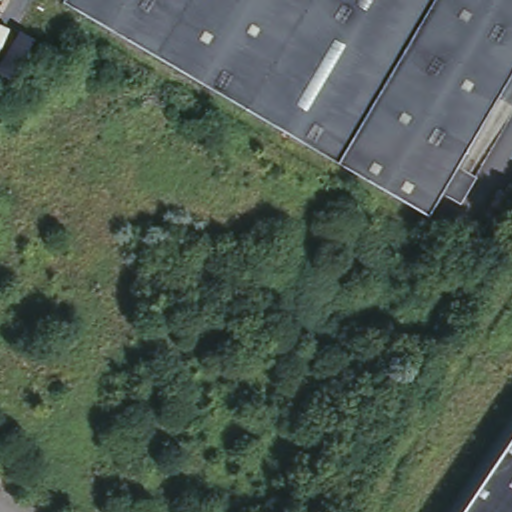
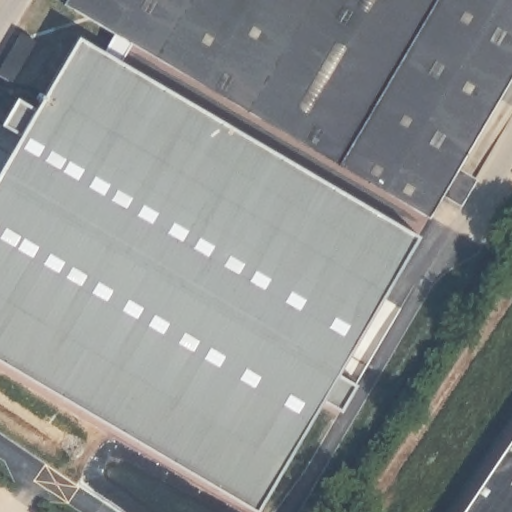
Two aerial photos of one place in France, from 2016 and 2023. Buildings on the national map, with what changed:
unchanged [(440,190),(426,212),(65,0),(512,0),(512,66),(456,162),(474,172),(458,200),(440,190)]
unchanged [(19,27),(34,36),(10,75),(0,69),(0,59),(19,27)]
new [(376,296),(395,308),(340,410),(318,400),(256,505),(0,359),(0,126),(18,95),(37,106),(77,37),(408,233),(376,296)]
unchanged [(512,512),(455,512),(512,425),(512,512)]

